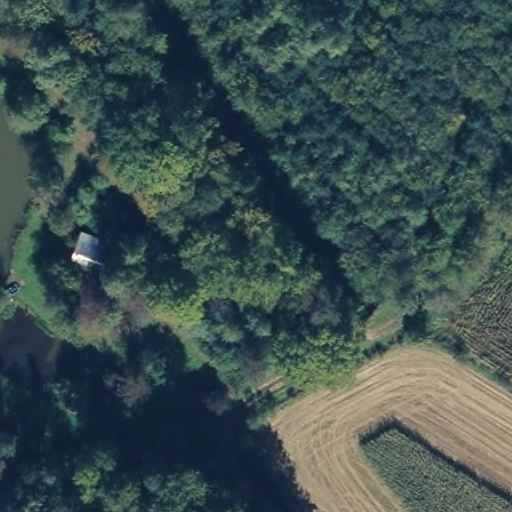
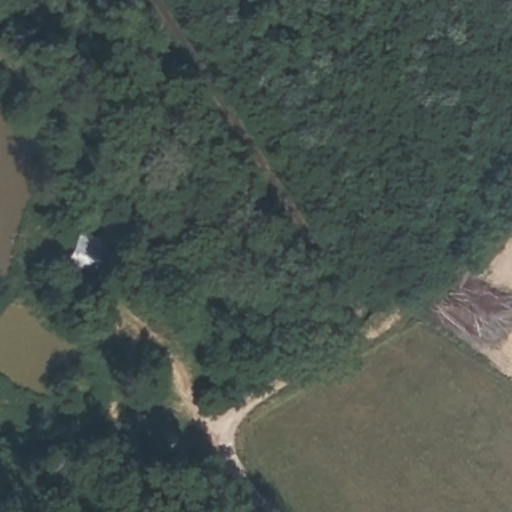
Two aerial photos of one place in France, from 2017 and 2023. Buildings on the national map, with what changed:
unchanged [(110,245),(96,287),(64,278),(81,234),(110,245)]

